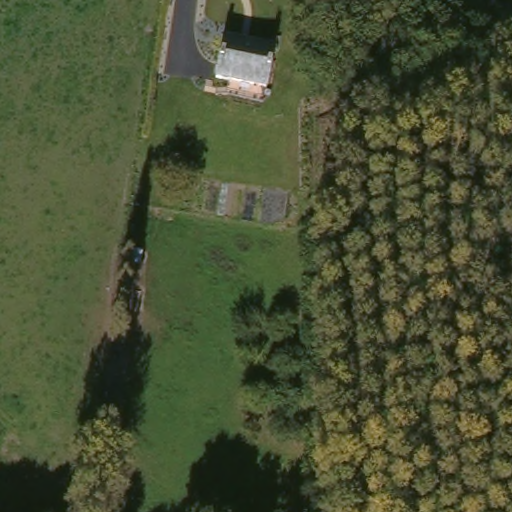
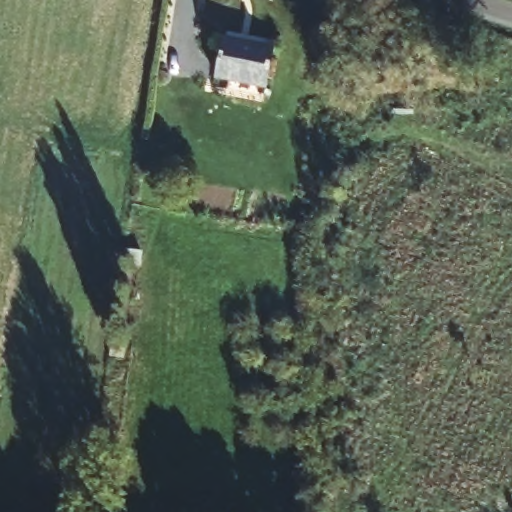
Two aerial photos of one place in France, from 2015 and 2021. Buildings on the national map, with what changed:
unchanged [(281,47),(273,86),(224,75),(233,36),(281,47)]

